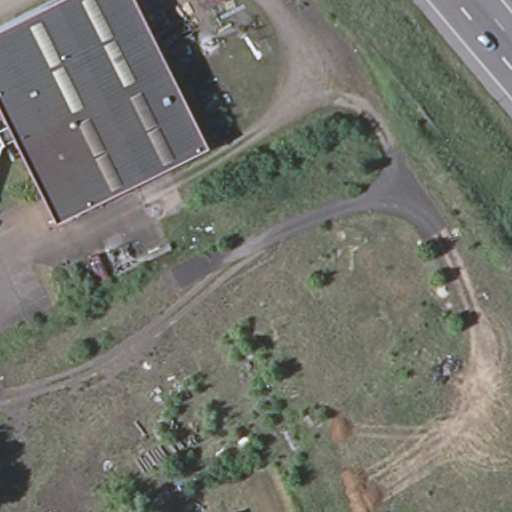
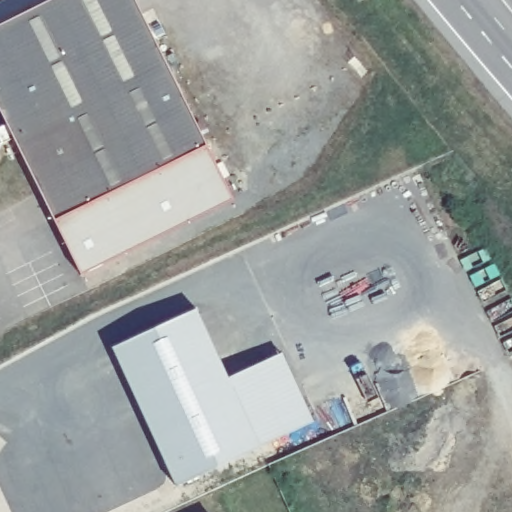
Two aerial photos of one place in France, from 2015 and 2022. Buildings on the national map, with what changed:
unchanged [(0,118),(0,22),(44,0),(131,0),(205,143),(51,219),(10,138),(0,140),(0,125),(3,124),(0,118)]
new [(195,309),(229,378),(283,354),(313,424),(175,484),(113,348),(195,309)]

